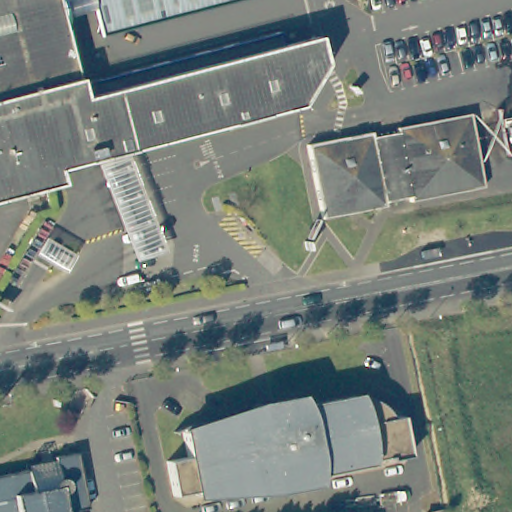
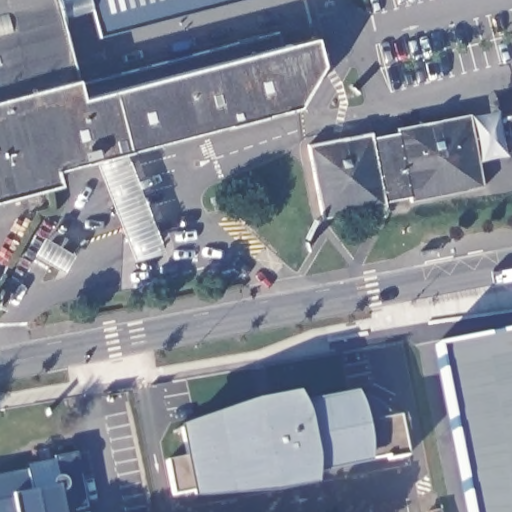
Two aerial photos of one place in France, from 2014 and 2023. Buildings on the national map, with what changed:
unchanged [(55,0),(80,95),(313,38),(326,79),(312,102),(54,168),(55,172),(57,181),(0,195),(0,0),(55,0)]
unchanged [(92,0),(233,0),(102,34),(92,0)]
unchanged [(310,151),(397,135),(396,129),(470,116),(483,189),(411,203),(410,198),(386,202),(386,207),(322,219),(310,151)]
new [(435,346),(512,333),(512,512),(469,512),(435,346)]
unchanged [(289,388),(291,399),(358,388),(367,390),(377,395),(382,403),(385,410),(393,408),(401,447),(380,452),(380,448),(305,462),(302,452),(298,442),(280,390),(289,388)]
unchanged [(298,442),(302,452),(305,462),(303,463),(306,475),(266,483),(263,473),(190,486),(189,483),(170,485),(161,451),(181,447),(176,421),(189,416),(200,414),(216,414),(250,407),(247,397),(280,390),(298,442)]
unchanged [(25,472),(24,468),(53,462),(52,458),(75,454),(87,510),(79,512),(0,512),(0,476),(25,472)]
unchanged [(422,509),(440,506),(441,512),(423,512),(422,509)]

